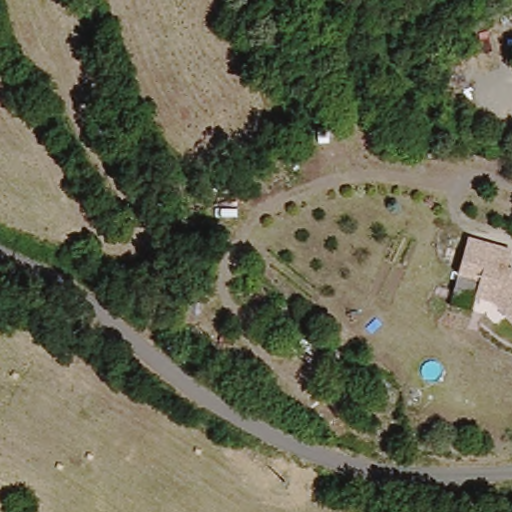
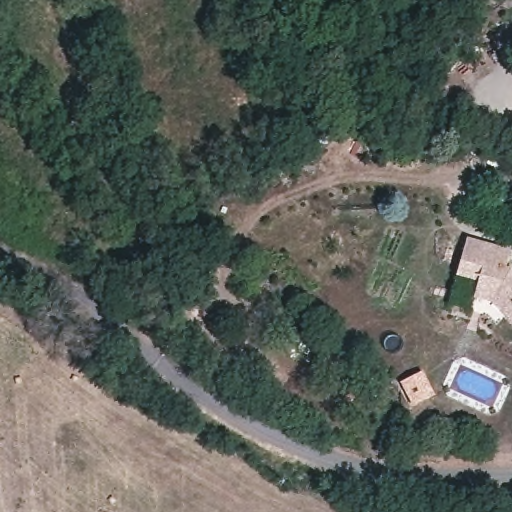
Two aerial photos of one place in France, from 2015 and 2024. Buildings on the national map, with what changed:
unchanged [(501,265),(506,265),(512,268),(512,308),(497,300),(479,301),(479,283),(456,284),(455,246),(501,246),(501,265)]

